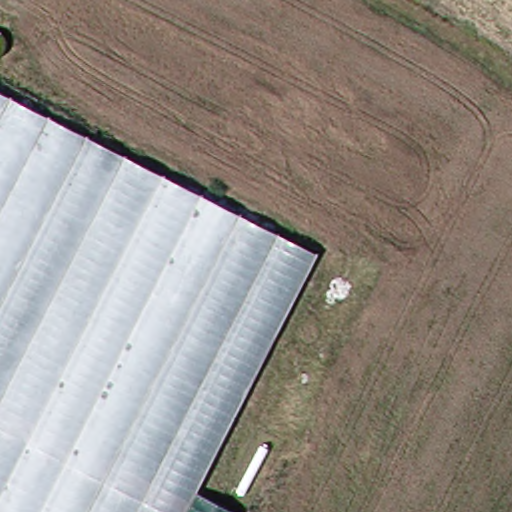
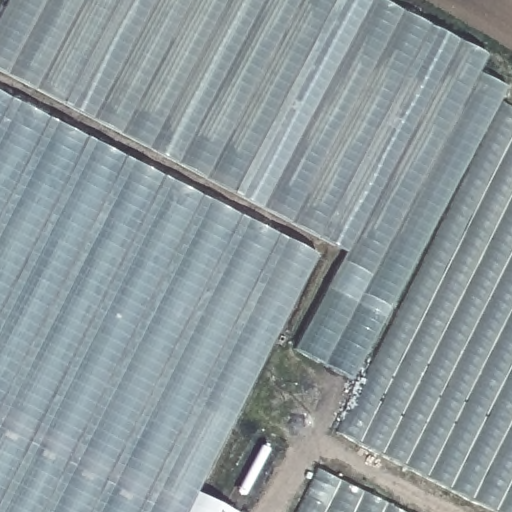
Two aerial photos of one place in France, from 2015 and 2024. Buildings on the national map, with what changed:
new [(381,0),(486,55),(477,73),(505,87),(350,377),(295,347),(345,252),(0,70),(0,14),(8,0),(381,0)]
unchanged [(327,253),(195,512),(0,512),(0,86),(327,253)]
new [(512,109),(512,512),(495,512),(335,431),(500,101),(512,109)]
new [(406,512),(295,512),(317,467),(406,512)]
new [(202,497),(233,512),(195,512),(202,497)]

